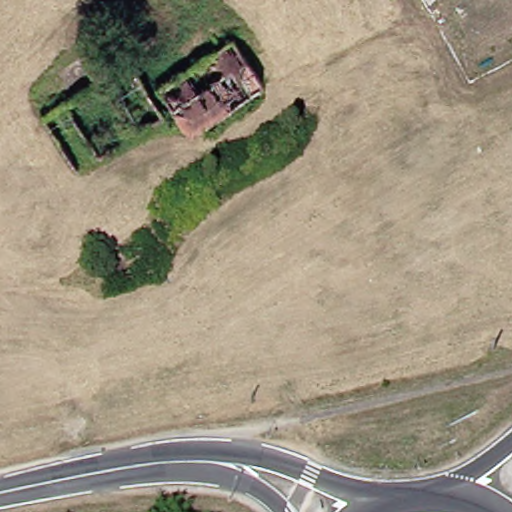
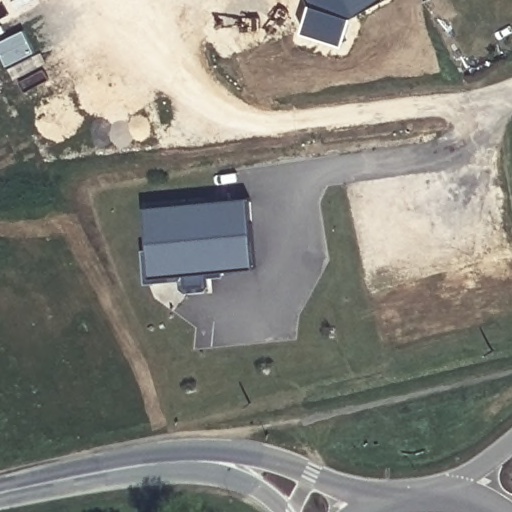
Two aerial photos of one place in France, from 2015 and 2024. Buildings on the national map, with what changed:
new [(316,7),(313,0),(384,0),(348,17),(342,41),(310,32),(316,7)]
new [(145,210),(248,199),(255,266),(205,271),(207,286),(185,290),(182,274),(151,275),(145,210)]

